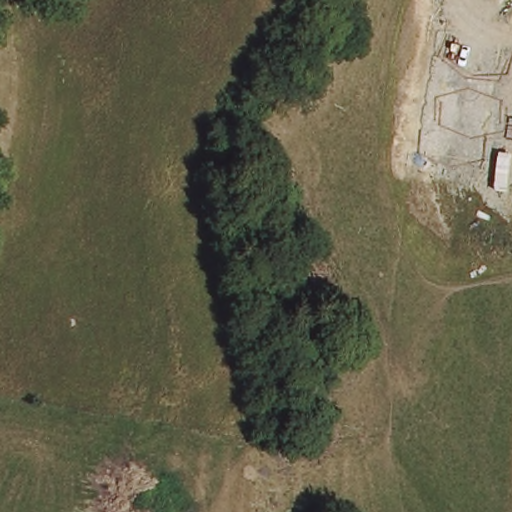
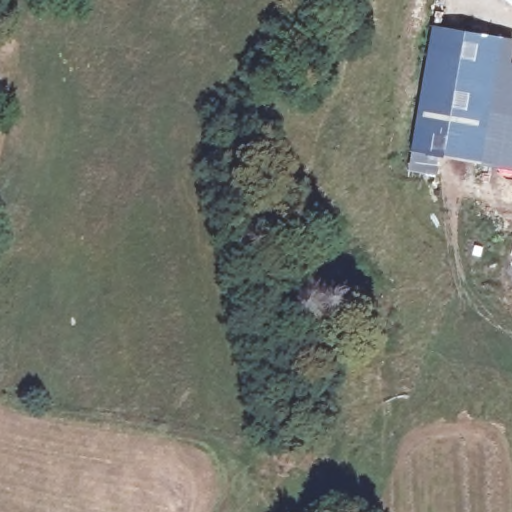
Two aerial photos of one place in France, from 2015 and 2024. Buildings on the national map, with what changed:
new [(432,26),(503,38),(481,162),(408,151),(432,26)]

